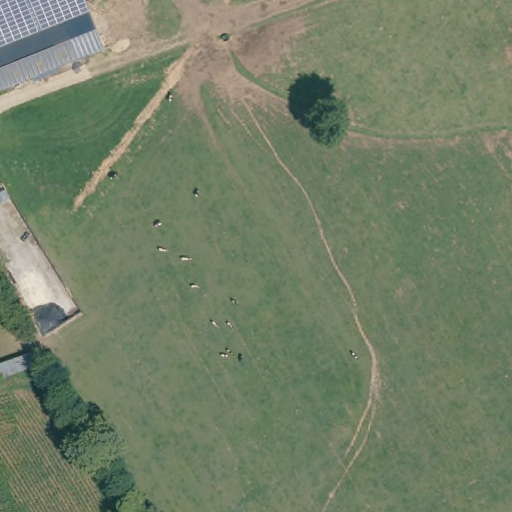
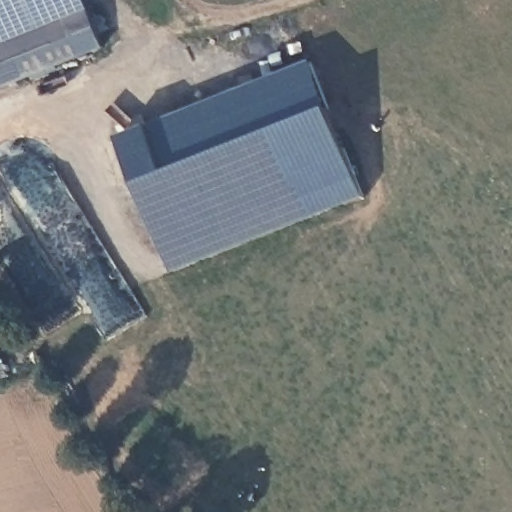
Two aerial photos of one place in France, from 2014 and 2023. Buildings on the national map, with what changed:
unchanged [(65,12),(80,51),(0,82),(0,0),(88,0),(89,3),(65,12)]
new [(148,127),(313,62),(330,109),(365,197),(173,274),(118,138),(148,127)]

